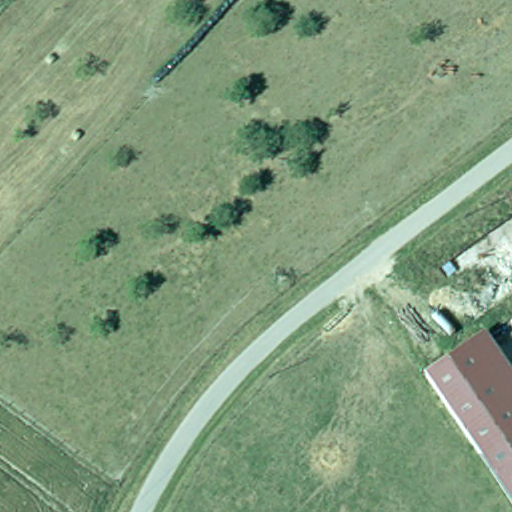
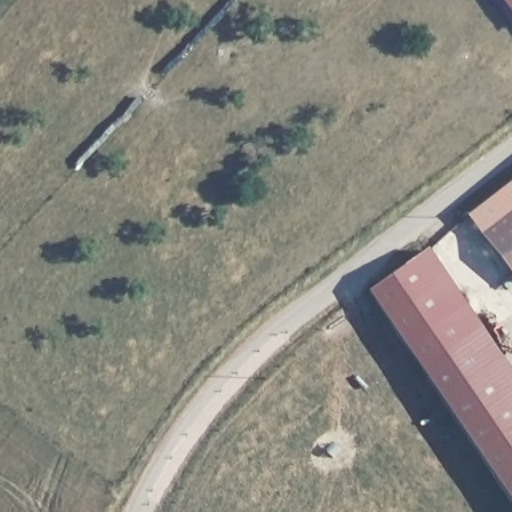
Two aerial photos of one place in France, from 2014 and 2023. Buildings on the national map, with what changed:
new [(512,18),(498,0),(511,0),(512,2),(512,18)]
new [(512,0),(512,2),(511,0),(512,0)]
new [(512,182),(512,277),(466,217),(512,182)]
new [(481,330),(421,371),(367,293),(429,249),(481,330)]
unchanged [(512,506),(421,371),(481,330),(512,375),(512,506)]

